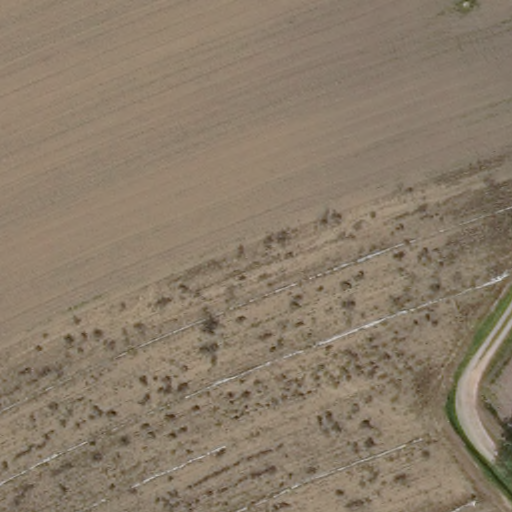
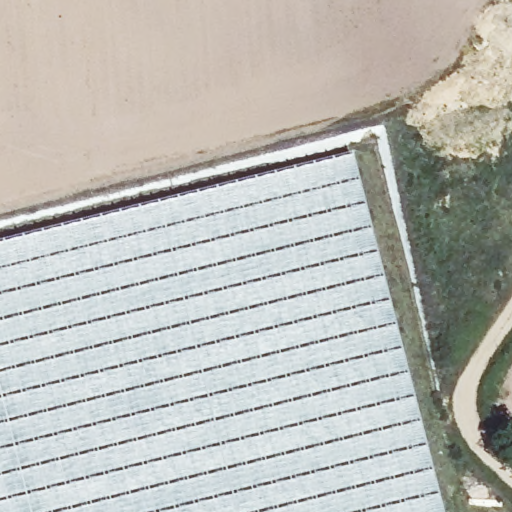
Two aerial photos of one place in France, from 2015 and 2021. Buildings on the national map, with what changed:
new [(355,154),(444,512),(0,512),(0,242),(355,154)]

